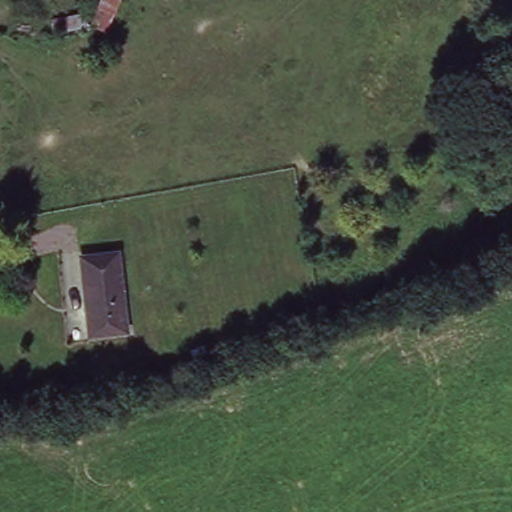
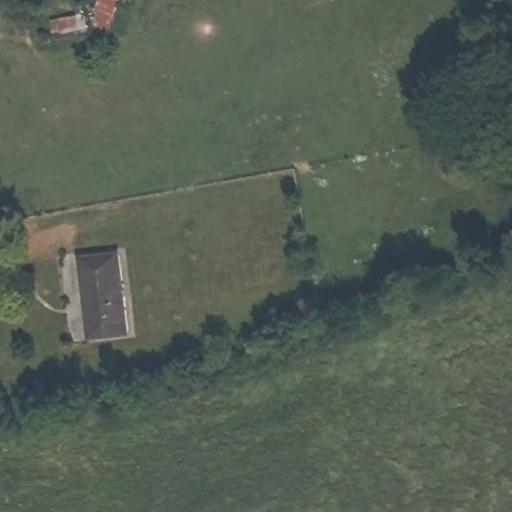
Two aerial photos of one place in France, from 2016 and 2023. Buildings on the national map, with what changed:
unchanged [(118,0),(103,35),(89,29),(60,37),(58,12),(90,6),(93,0),(118,0)]
unchanged [(108,252),(123,328),(89,335),(75,257),(108,252)]

